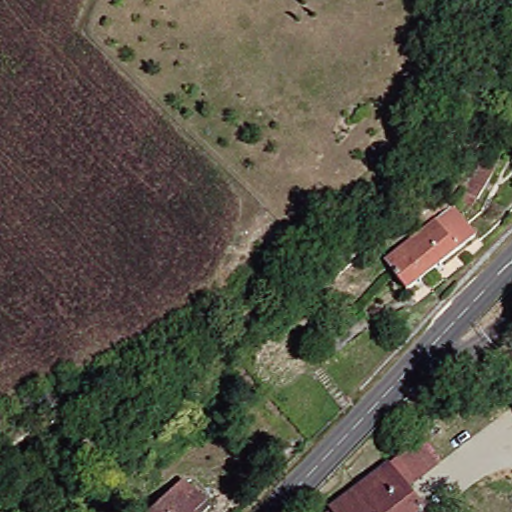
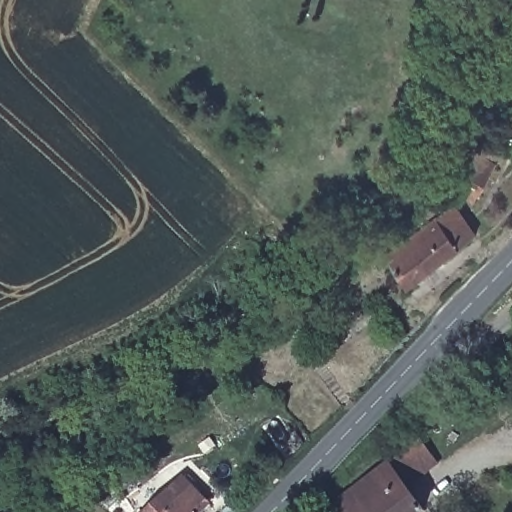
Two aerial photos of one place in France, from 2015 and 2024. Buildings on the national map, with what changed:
unchanged [(511,118),(512,117),(512,119),(511,118)]
unchanged [(473,204),(470,202),(466,210),(456,204),(462,193),(457,190),(471,170),(473,171),(476,167),(490,175),(473,204)]
unchanged [(468,242),(400,292),(385,271),(379,262),(430,224),(447,212),(468,242)]
unchanged [(390,459),(386,454),(407,438),(426,466),(398,489),(415,512),(323,512),(325,510),(390,459)]
unchanged [(200,490),(207,497),(192,511),(191,512),(134,512),(180,467),(200,490)]

